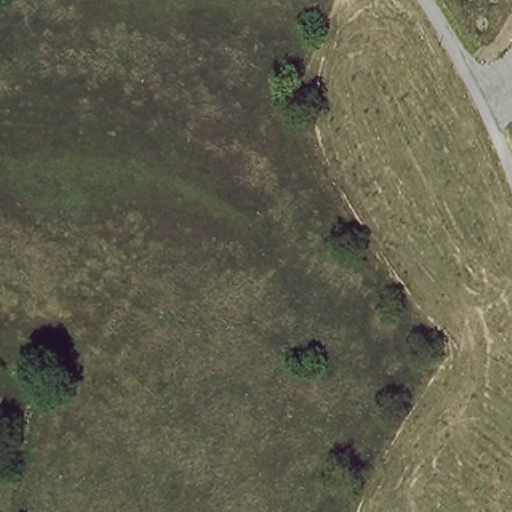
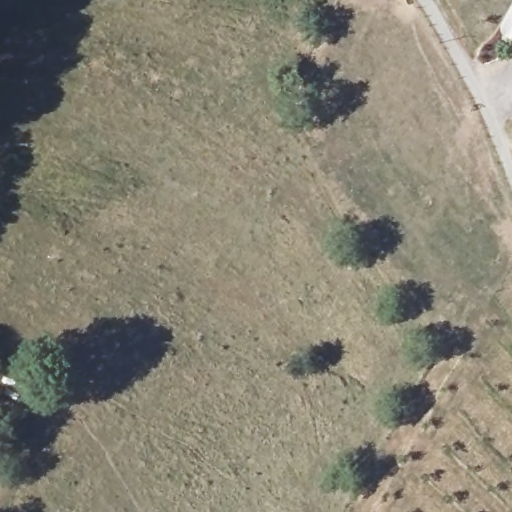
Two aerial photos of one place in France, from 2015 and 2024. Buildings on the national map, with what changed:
[]

